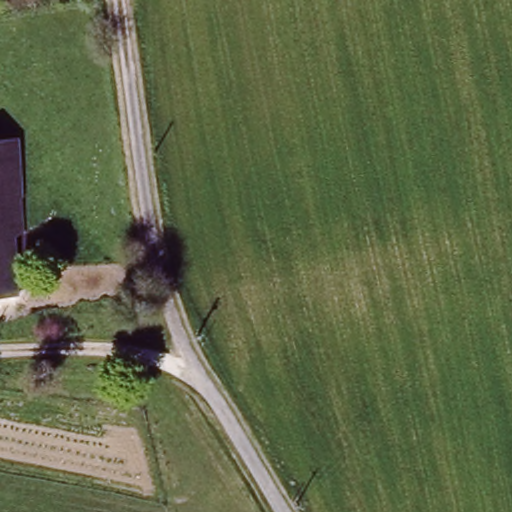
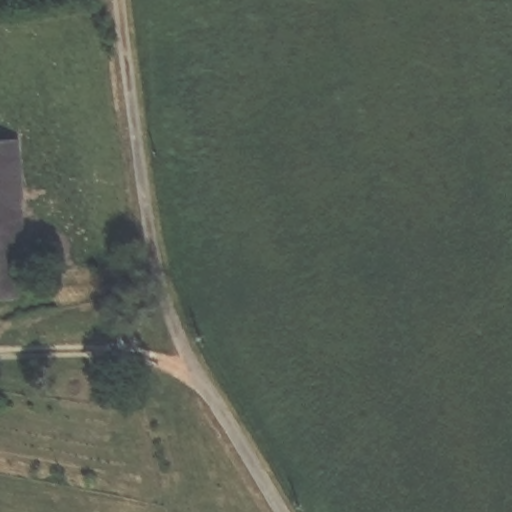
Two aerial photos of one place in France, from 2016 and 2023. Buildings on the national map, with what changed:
unchanged [(25,135),(30,232),(17,232),(19,296),(0,297),(0,137),(25,135)]

